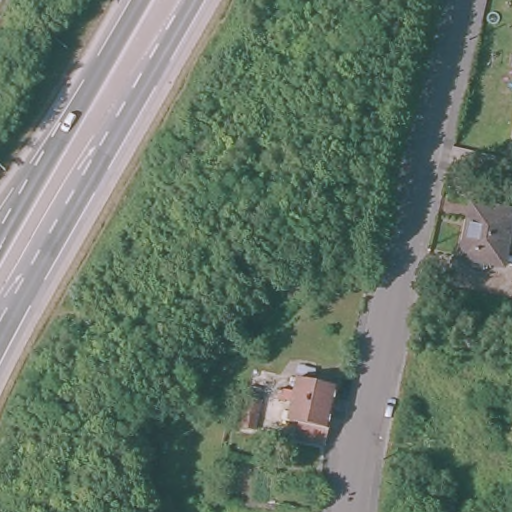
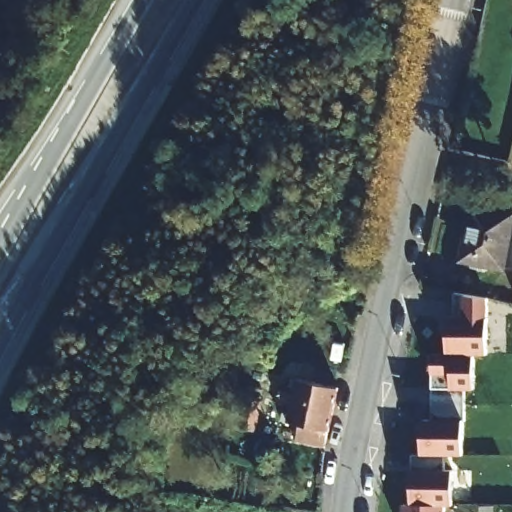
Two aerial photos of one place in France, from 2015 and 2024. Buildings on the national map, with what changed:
unchanged [(503,262),(459,253),(469,203),(512,212),(512,217),(503,262)]
new [(487,301),(486,354),(474,354),(475,389),(466,389),(464,453),(446,453),(446,469),(452,469),(452,504),(443,504),(443,512),(406,512),(406,503),(414,503),(413,455),(424,457),(424,422),(434,422),(434,357),(449,357),(449,316),(453,316),(454,294),(487,301)]
unchanged [(296,439),(299,419),(279,416),(281,407),(286,408),(286,400),(274,398),(275,389),(289,391),(293,374),(334,381),(324,442),(296,439)]
unchanged [(221,408),(236,410),(230,441),(216,439),(221,408)]

